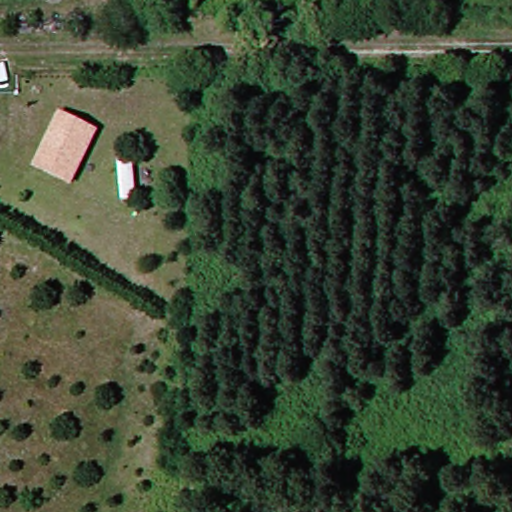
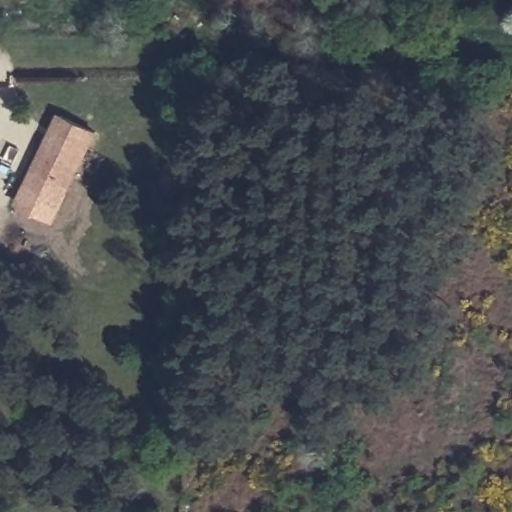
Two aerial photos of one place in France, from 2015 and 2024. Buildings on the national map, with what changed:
unchanged [(103,130),(76,188),(34,168),(60,111),(103,130)]
new [(34,168),(76,188),(55,225),(15,204),(34,168)]

